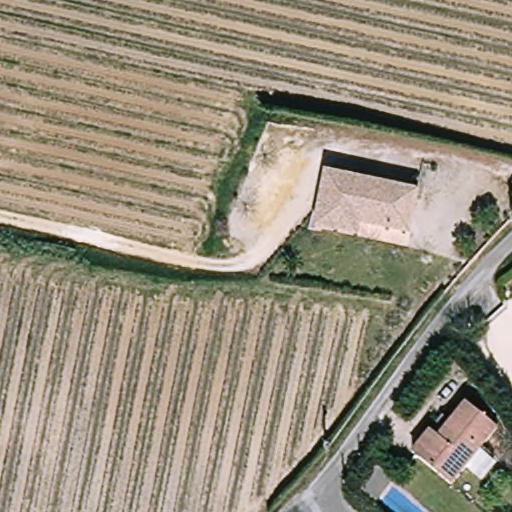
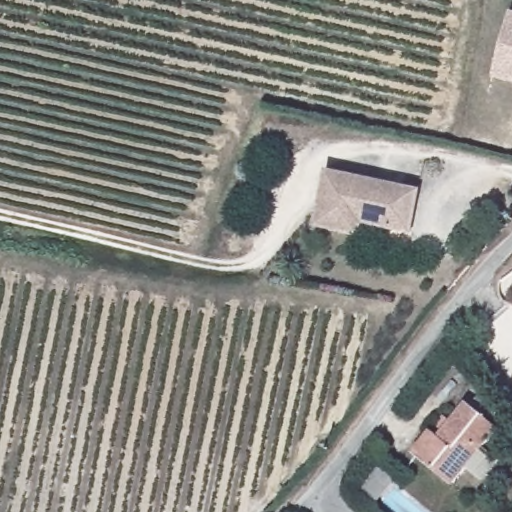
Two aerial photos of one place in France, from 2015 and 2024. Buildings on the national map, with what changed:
new [(512,13),(512,84),(492,79),(512,13)]
unchanged [(322,231),(324,217),(332,175),(417,194),(409,235),(359,224),(356,237),(322,231)]
unchanged [(452,485),(411,455),(433,432),(439,436),(469,403),(499,427),(452,485)]

